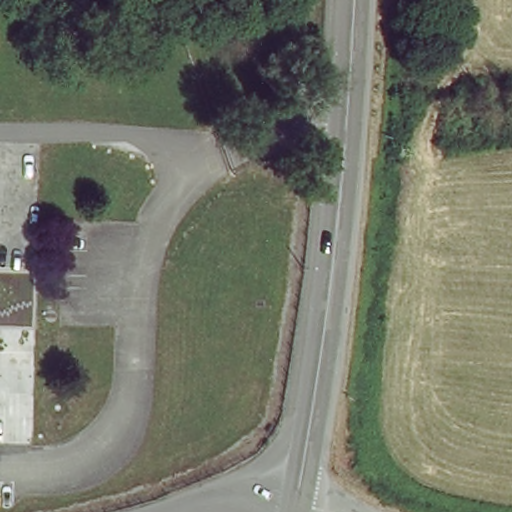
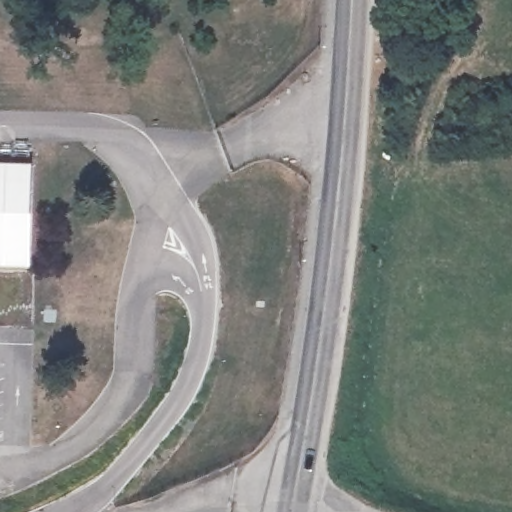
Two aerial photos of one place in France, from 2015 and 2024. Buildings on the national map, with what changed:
new [(0,167),(31,168),(30,269),(0,269),(0,167)]

